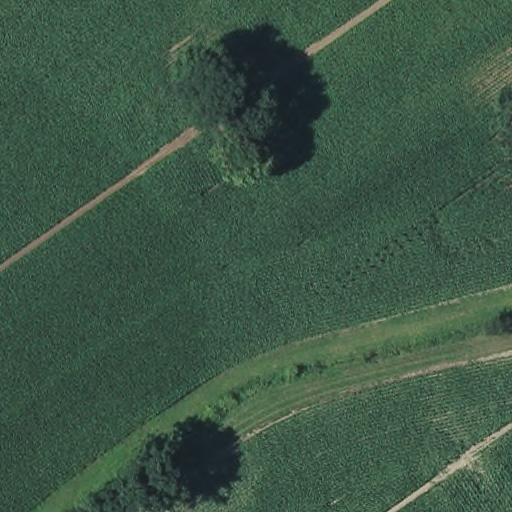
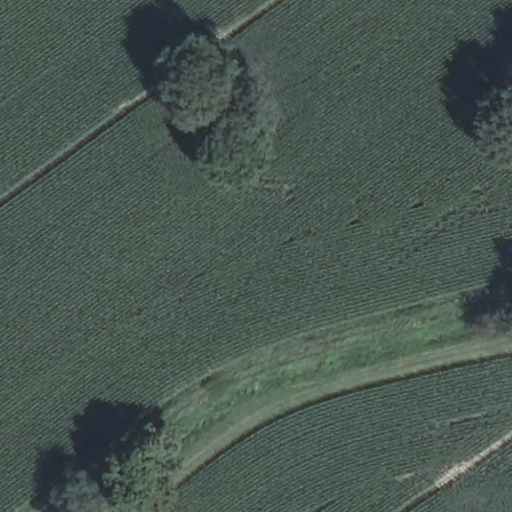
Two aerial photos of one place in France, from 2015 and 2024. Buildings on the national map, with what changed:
[]

